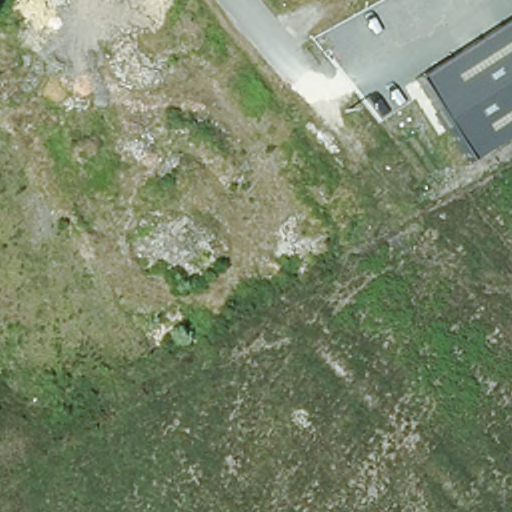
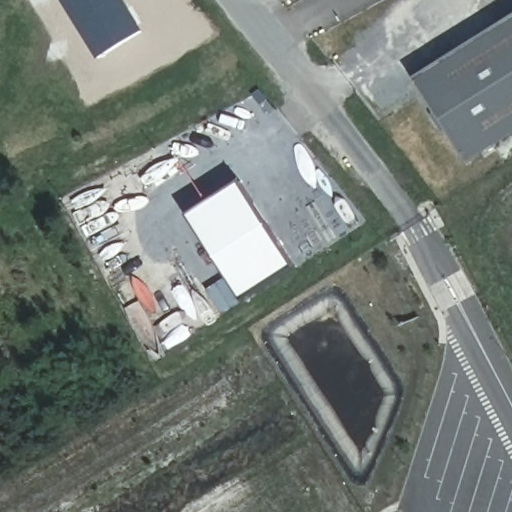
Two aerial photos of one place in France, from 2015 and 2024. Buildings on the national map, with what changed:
new [(142,31),(98,59),(62,0),(123,0),(142,31)]
unchanged [(469,160),(418,76),(512,16),(512,132),(469,160)]
new [(207,290),(228,277),(189,215),(240,183),(294,268),(222,314),(207,290)]

